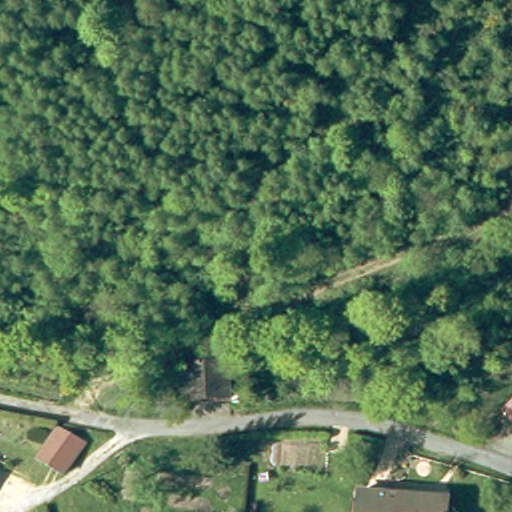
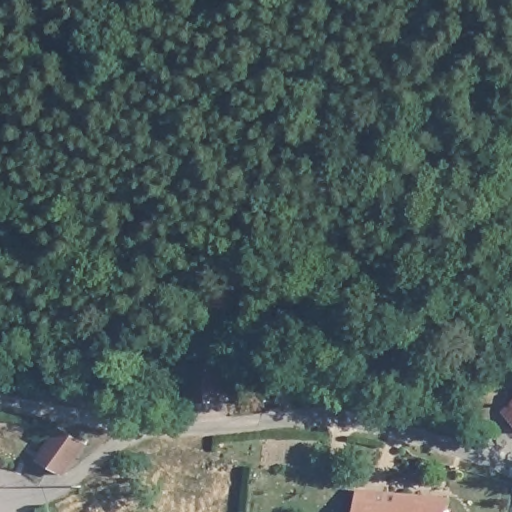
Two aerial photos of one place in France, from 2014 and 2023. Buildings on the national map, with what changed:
unchanged [(214,353),(221,383),(193,389),(186,358),(214,353)]
unchanged [(504,401),(512,395),(512,410),(504,401)]
unchanged [(38,466),(58,439),(88,444),(64,478),(38,466)]
unchanged [(361,496),(447,498),(447,512),(360,512),(361,496)]

